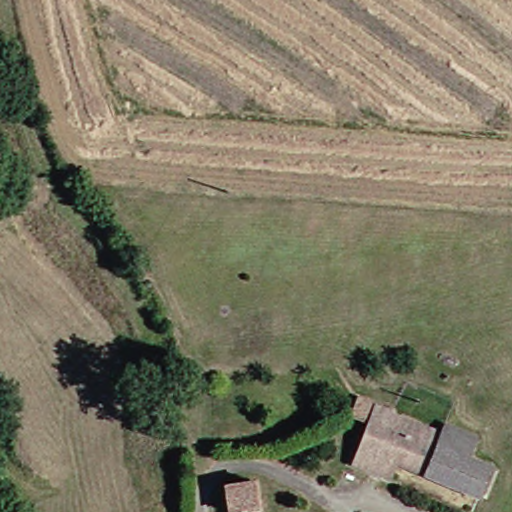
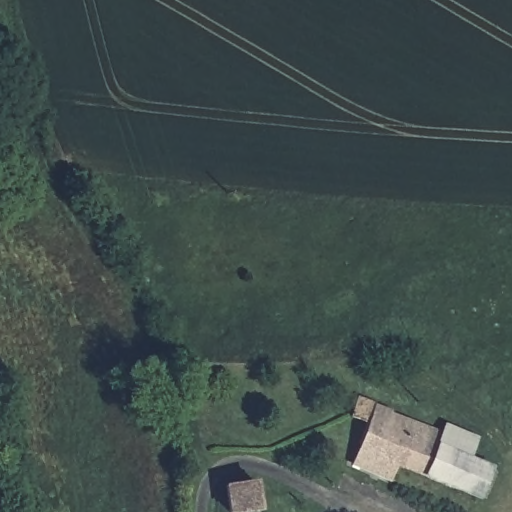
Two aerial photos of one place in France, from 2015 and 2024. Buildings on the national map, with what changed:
unchanged [(356,466),(363,450),(359,447),(366,427),(354,421),(359,405),(370,409),(450,439),(457,416),(489,430),(480,451),(501,460),(488,496),(486,495),(405,467),(397,483),(356,466)]
unchanged [(352,423),(352,431),(347,437),(346,439),(344,442),(339,443),(334,443),(332,442),(327,441),(325,441),(323,437),(322,432),(321,426),(322,421),(327,413),(337,411),(344,413),(349,417),(352,423)]
unchanged [(233,512),(232,484),(262,482),(263,512),(233,512)]

